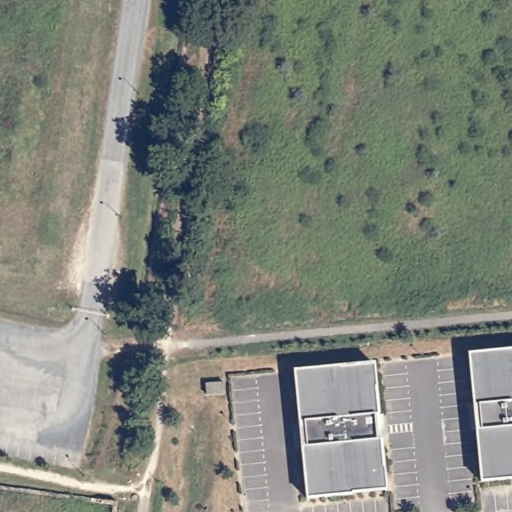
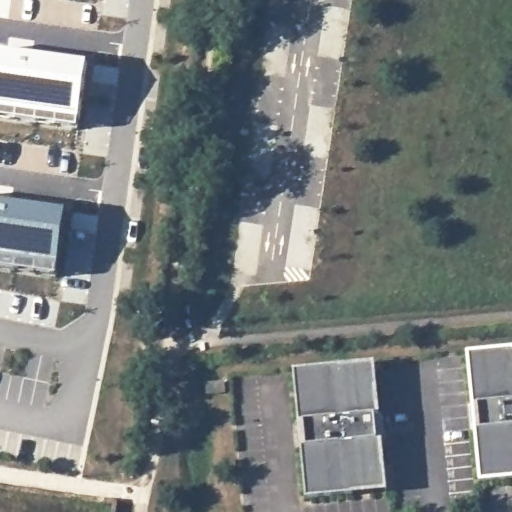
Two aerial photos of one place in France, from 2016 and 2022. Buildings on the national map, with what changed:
new [(88,63),(79,130),(0,119),(0,51),(88,63)]
new [(65,214),(56,280),(0,271),(0,204),(65,214)]
unchanged [(512,479),(492,481),(481,482),(476,430),(479,430),(477,406),(473,406),(468,354),(512,350),(512,479)]
unchanged [(374,364),(379,415),(375,415),(378,440),(381,439),(386,491),(307,499),(302,447),(305,447),(303,422),(299,423),(294,371),(374,364)]
unchanged [(224,382),(225,393),(206,394),(205,383),(224,382)]

